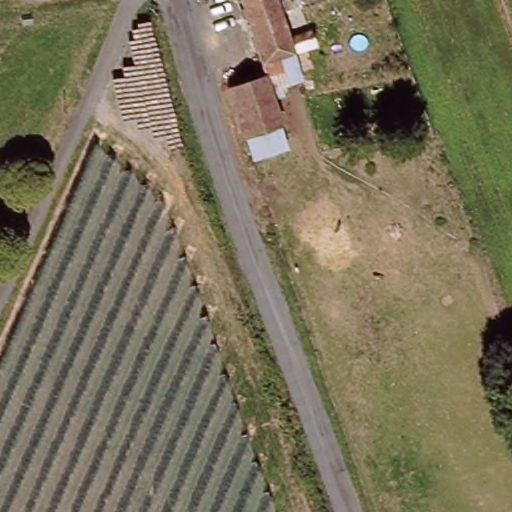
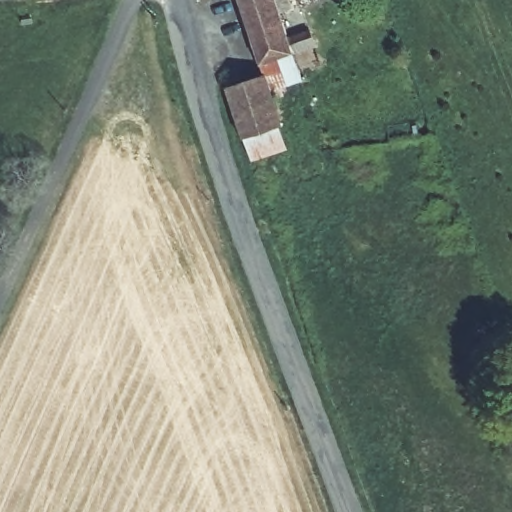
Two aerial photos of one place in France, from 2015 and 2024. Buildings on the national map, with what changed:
unchanged [(277,132),(239,144),(225,90),(262,77),(236,0),(270,0),(298,86),(266,96),(277,132)]

